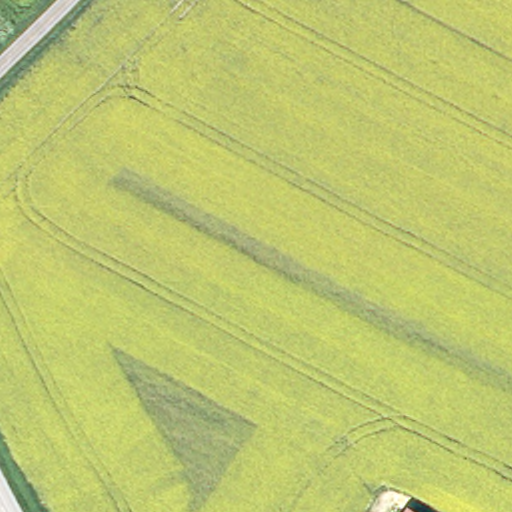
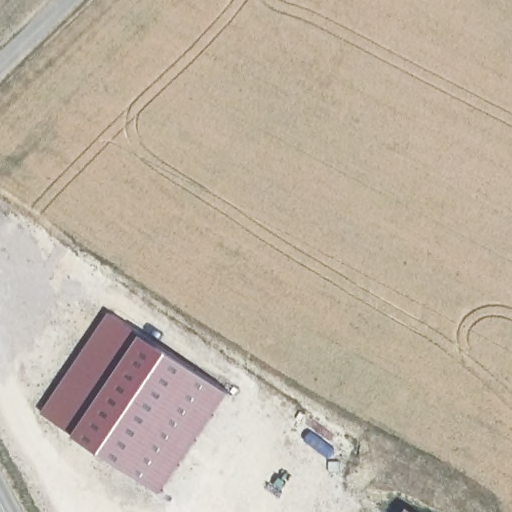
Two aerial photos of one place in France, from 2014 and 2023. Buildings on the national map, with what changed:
new [(110,312),(228,392),(161,491),(42,412),(110,312)]
unchanged [(404,512),(407,507),(414,512),(404,512)]

